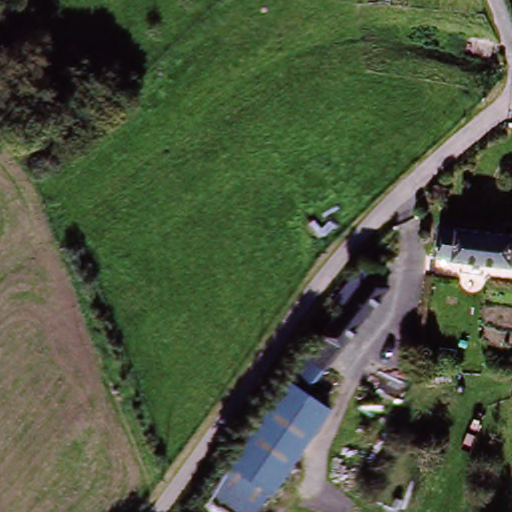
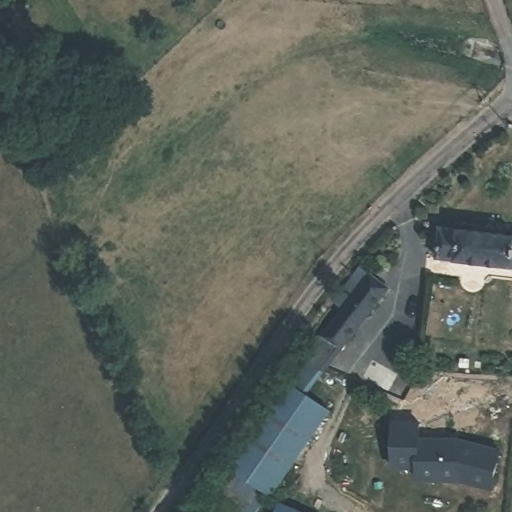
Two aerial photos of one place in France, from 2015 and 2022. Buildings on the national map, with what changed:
unchanged [(512,239),(512,269),(437,259),(441,228),(512,239)]
unchanged [(232,465),(288,380),(325,329),(371,273),(393,290),(346,346),(310,395),(329,416),(276,491),(259,512),(239,512),(215,497),(232,465)]
new [(420,420),(421,434),(453,436),(500,447),(490,489),(460,480),(412,479),(415,468),(391,468),(391,419),(420,420)]

